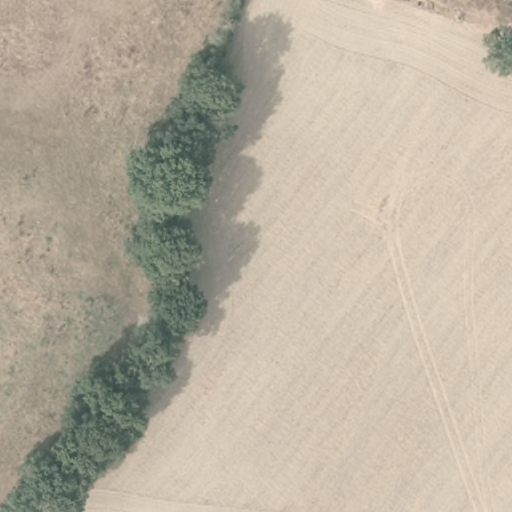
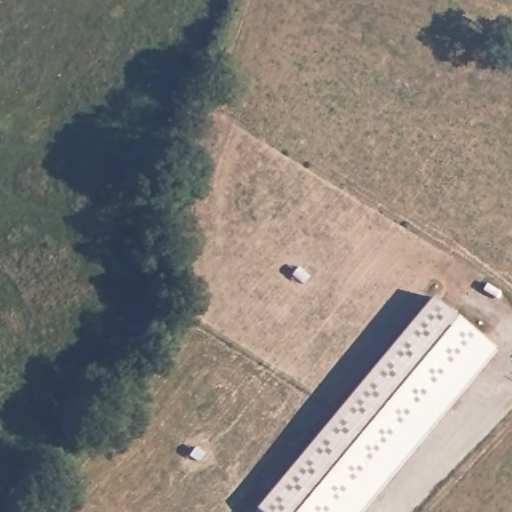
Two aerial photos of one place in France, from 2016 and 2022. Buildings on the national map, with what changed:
new [(358,512),(260,512),(254,507),(430,295),(495,347),(358,512)]

